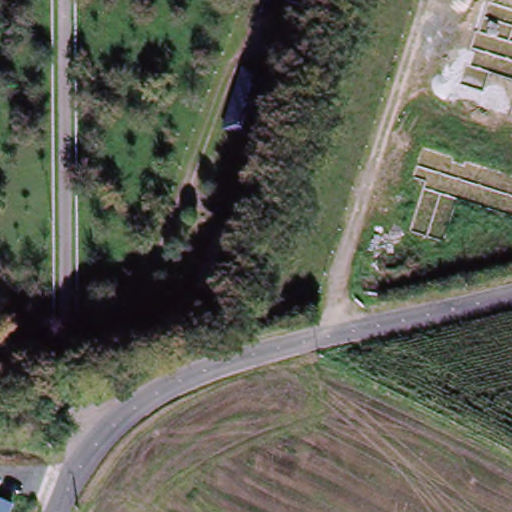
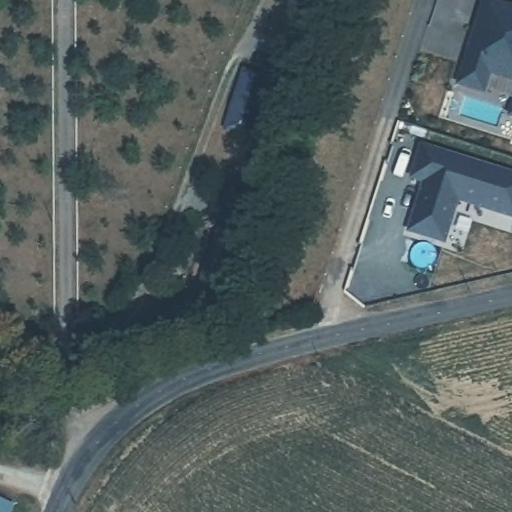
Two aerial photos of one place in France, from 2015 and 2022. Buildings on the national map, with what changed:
unchanged [(308,56),(280,48),(294,0),(324,0),(308,56)]
new [(483,95),(455,86),(482,0),(492,0),(512,6),(512,83),(490,76),(483,95)]
unchanged [(219,131),(240,70),(273,81),(254,141),(219,131)]
new [(512,100),(512,117),(507,116),(512,100)]
new [(443,244),(407,232),(421,184),(407,179),(420,143),(512,173),(512,219),(458,202),(443,244)]
unchanged [(226,217),(235,188),(257,194),(249,224),(226,217)]
unchanged [(242,247),(229,297),(199,288),(212,239),(242,247)]
new [(15,506),(13,512),(0,512),(0,499),(15,506)]

